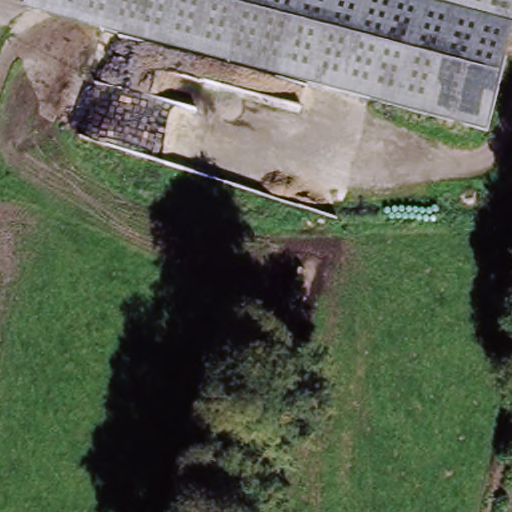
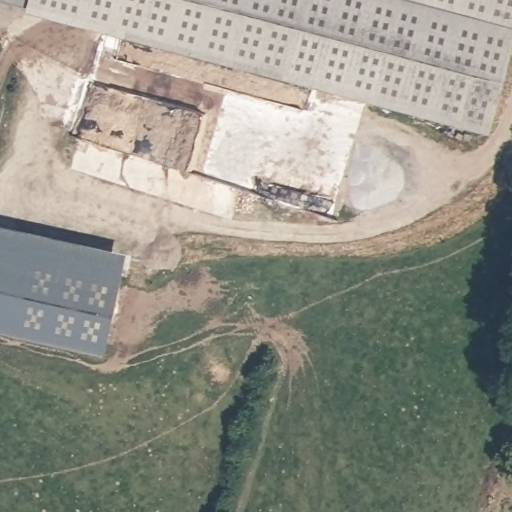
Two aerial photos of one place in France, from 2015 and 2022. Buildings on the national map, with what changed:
unchanged [(0,3),(0,0),(512,0),(512,41),(490,133),(0,3)]
new [(125,253),(122,273),(0,247),(0,225),(125,253)]
new [(122,273),(105,352),(0,330),(0,247),(122,273)]

